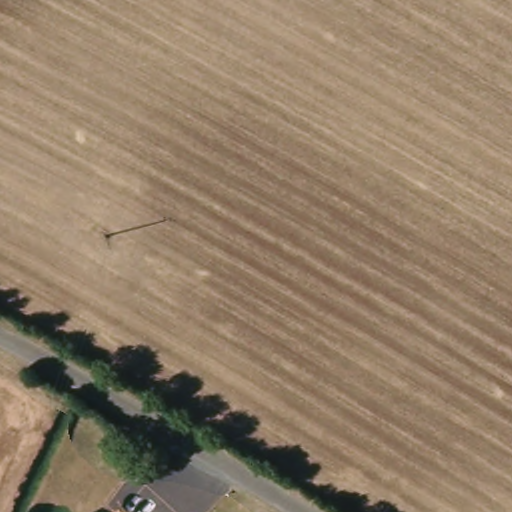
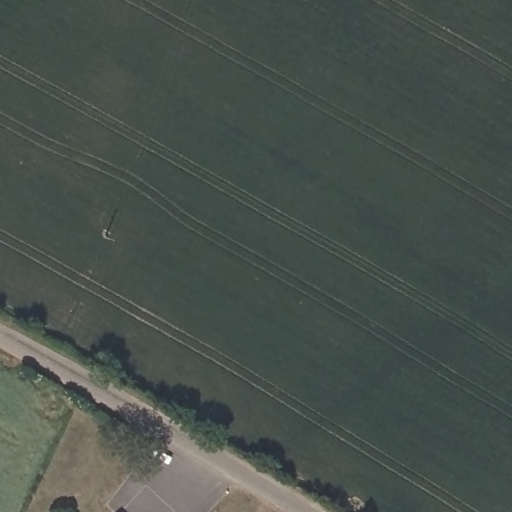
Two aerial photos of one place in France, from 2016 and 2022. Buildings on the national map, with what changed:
unchanged [(121,510),(124,512),(119,512),(121,510)]

